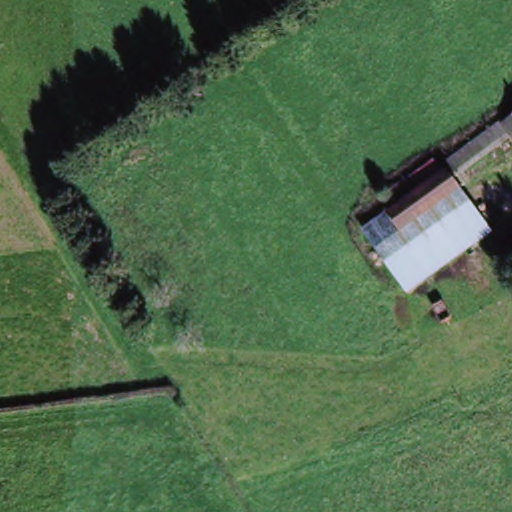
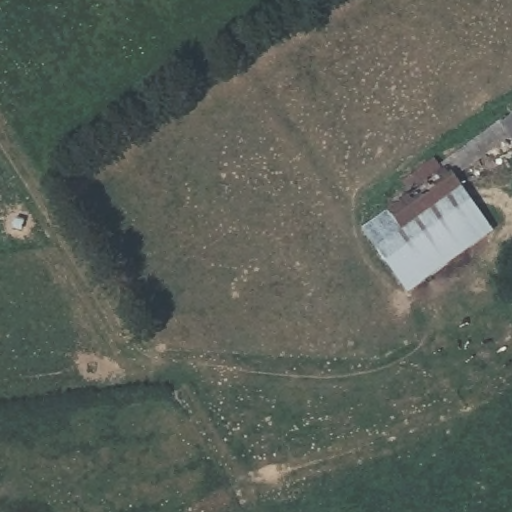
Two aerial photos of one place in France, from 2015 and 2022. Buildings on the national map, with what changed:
unchanged [(507,115),(512,112),(512,121),(507,115)]
unchanged [(453,153),(507,115),(512,121),(512,134),(463,167),(453,153)]
unchanged [(448,182),(458,197),(376,254),(357,225),(438,168),(448,182)]
unchanged [(458,197),(488,242),(407,299),(376,254),(458,197)]

